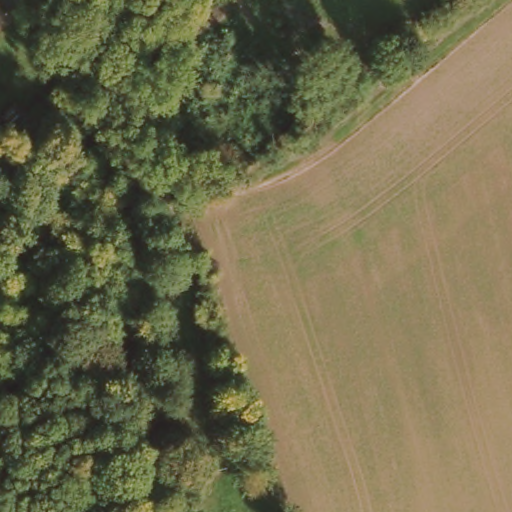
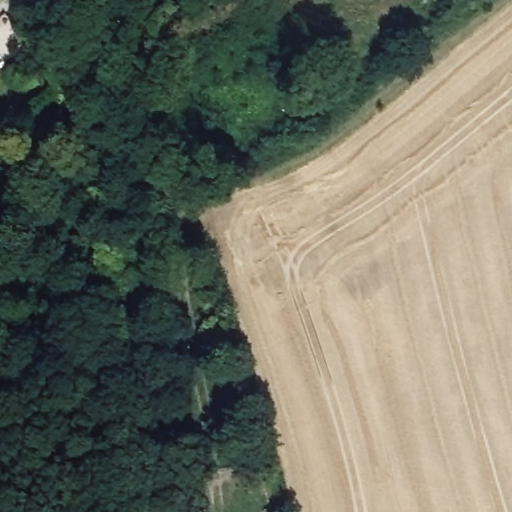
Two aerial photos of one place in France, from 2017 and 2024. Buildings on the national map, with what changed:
unchanged [(0,81),(0,63),(7,76),(0,81)]

